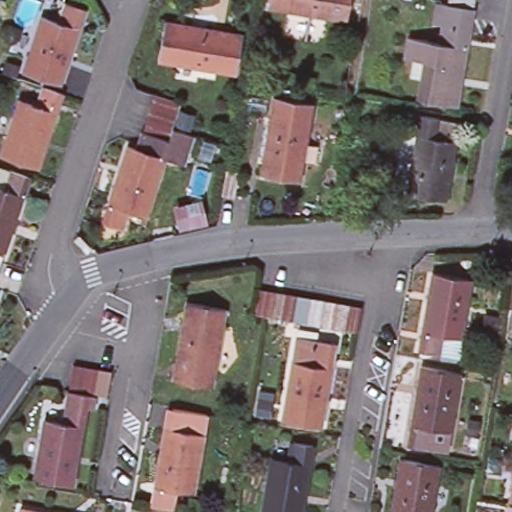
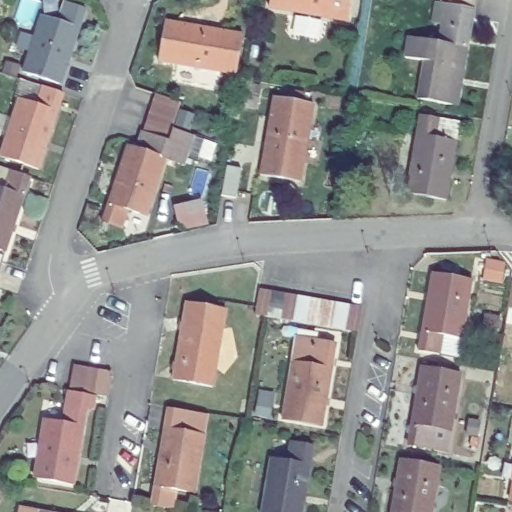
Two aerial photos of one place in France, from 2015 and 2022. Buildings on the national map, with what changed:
unchanged [(271,0),(350,0),(346,19),(271,5),(271,0)]
unchanged [(475,0),(475,5),(472,16),(446,11),(448,0),(475,0)]
unchanged [(66,84),(29,73),(47,18),(66,24),(72,5),(89,10),(66,84)]
unchanged [(244,34),(237,73),(161,61),(167,21),(244,34)]
unchanged [(426,60),(409,56),(412,36),(451,42),(454,21),(472,25),(460,100),(420,94),(426,60)]
unchanged [(67,92),(44,168),(6,156),(24,99),(42,105),(48,86),(67,92)]
unchanged [(140,138),(145,126),(148,114),(152,101),(157,89),(182,97),(177,111),(174,123),(196,130),(186,161),(167,155),(149,211),(128,204),(122,222),(103,216),(129,139),(139,143),(140,138)]
unchanged [(315,103),(301,181),(262,174),(276,96),(315,103)]
unchanged [(422,109),(461,116),(447,193),(409,186),(422,109)]
unchanged [(2,246),(0,245),(0,183),(2,184),(9,165),(27,171),(2,246)]
unchanged [(239,176),(235,202),(224,200),(228,174),(239,176)]
unchanged [(437,271),(477,279),(465,337),(446,333),(442,351),(422,348),(437,271)]
unchanged [(344,326),(332,324),(320,322),(305,319),(292,317),(279,315),(274,314),(267,313),(271,287),(284,289),(296,292),(309,294),(322,296),(336,299),(349,301),(361,303),(373,305),(369,330),(357,328),(344,326)]
unchanged [(510,302),(512,290),(512,302),(510,302)]
unchanged [(214,386),(175,379),(187,302),(227,309),(214,386)]
unchanged [(324,420),(285,413),(295,354),(298,336),(318,339),(337,342),(324,420)]
unchanged [(69,404),(71,390),(76,366),(87,368),(100,371),(113,373),(109,397),(97,395),(95,409),(87,407),(74,483),(35,476),(45,420),(65,424),(69,404)]
unchanged [(429,452),(410,448),(424,369),(462,376),(451,437),(447,455),(429,452)]
unchanged [(152,505),(167,427),(206,434),(195,493),(176,489),(172,508),(152,505)]
unchanged [(269,458),(289,462),(292,441),(311,444),(298,512),(259,512),(269,458)]
unchanged [(432,512),(391,512),(402,458),(441,466),(432,512)]
unchanged [(511,500),(512,494),(512,500),(511,500)]
unchanged [(22,505),(64,512),(20,512),(22,505)]

